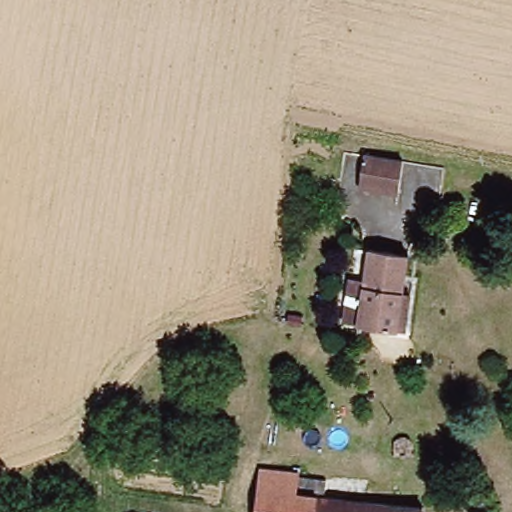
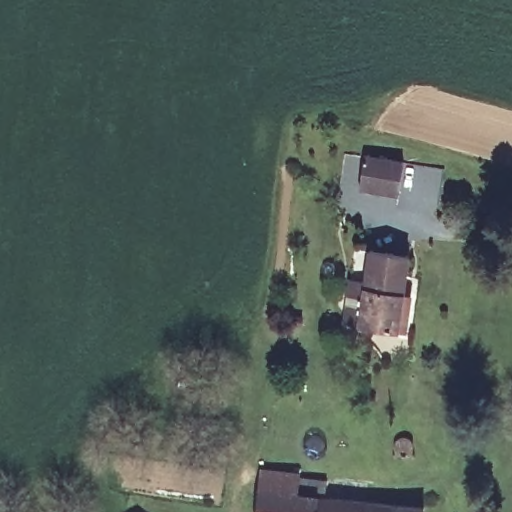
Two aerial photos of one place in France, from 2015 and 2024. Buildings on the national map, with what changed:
unchanged [(363,192),(367,154),(405,161),(401,196),(363,192)]
unchanged [(413,262),(399,332),(358,324),(368,255),(413,262)]
unchanged [(414,433),(415,447),(400,445),(402,432),(414,433)]
unchanged [(329,479),(329,498),(427,509),(427,512),(257,512),(263,470),(329,479)]

